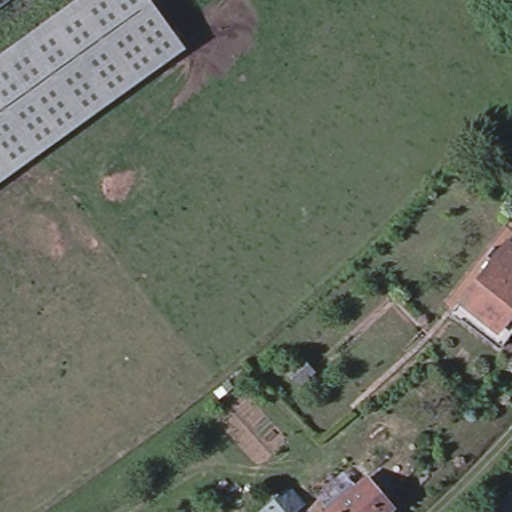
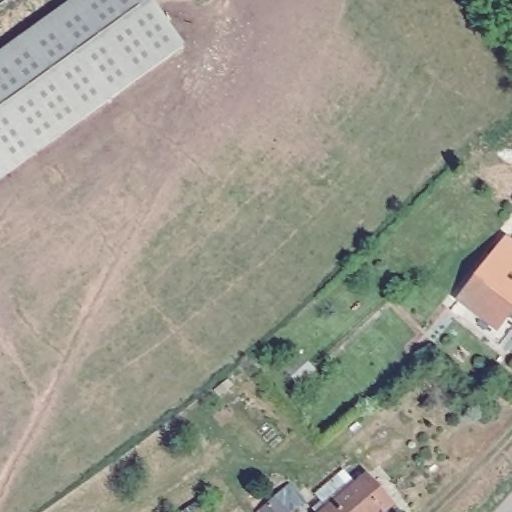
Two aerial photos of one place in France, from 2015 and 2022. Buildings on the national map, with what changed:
unchanged [(71,0),(151,0),(185,47),(0,180),(0,51),(71,0)]
unchanged [(512,320),(498,337),(451,301),(491,250),(486,246),(494,236),(499,240),(506,231),(512,236),(512,320)]
unchanged [(310,366),(298,376),(291,369),(303,358),(310,366)]
unchanged [(375,464),(397,491),(383,503),(387,509),(383,512),(318,512),(350,486),(349,485),(375,464)]

